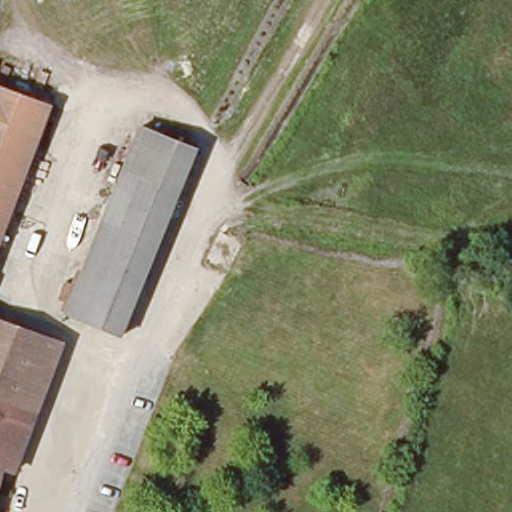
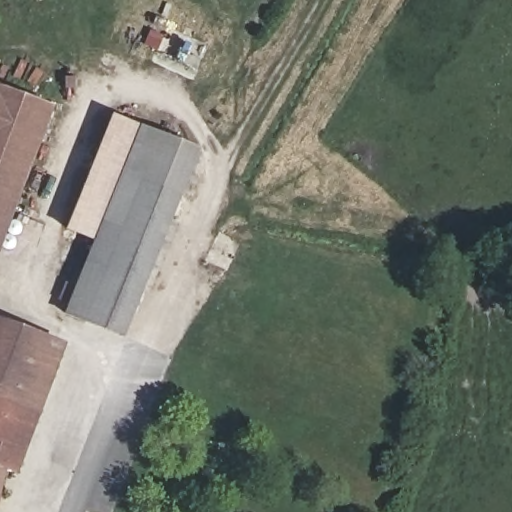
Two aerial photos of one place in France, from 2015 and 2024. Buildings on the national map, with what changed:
unchanged [(58,110),(0,252),(0,87),(58,110)]
new [(113,114),(142,127),(142,128),(123,173),(95,240),(66,229),(113,114)]
unchanged [(142,128),(142,127),(145,129),(197,151),(179,197),(123,173),(142,128)]
unchanged [(95,240),(123,173),(179,197),(141,289),(84,266),(95,240)]
unchanged [(141,289),(122,334),(65,311),(84,266),(141,289)]
unchanged [(56,346),(10,470),(0,468),(0,326),(56,346)]

